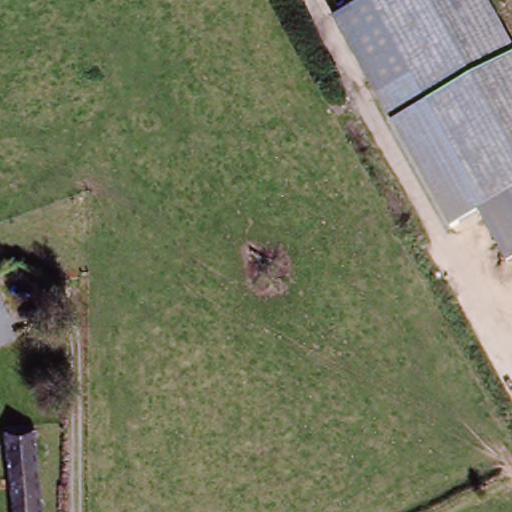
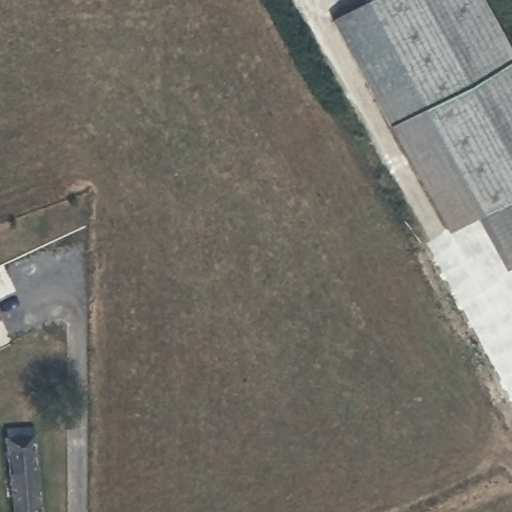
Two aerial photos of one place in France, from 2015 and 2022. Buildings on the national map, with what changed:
unchanged [(330,20),(367,0),(396,0),(511,200),(452,234),(330,20)]
unchanged [(511,200),(396,0),(487,0),(512,44),(512,202),(511,200)]
unchanged [(15,313),(0,319),(0,293),(5,290),(15,313)]
unchanged [(2,444),(32,440),(41,512),(9,512),(2,444)]

